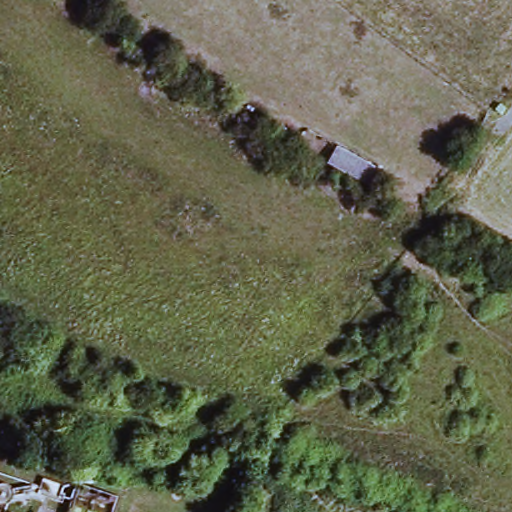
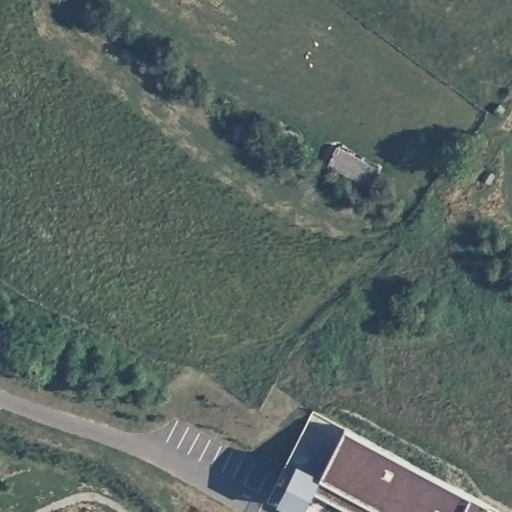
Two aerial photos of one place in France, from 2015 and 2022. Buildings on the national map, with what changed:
unchanged [(334,145),(380,168),(369,184),(325,162),(334,145)]
new [(321,410),(489,500),(483,512),(301,512),(297,510),(312,482),(290,469),(321,410)]

